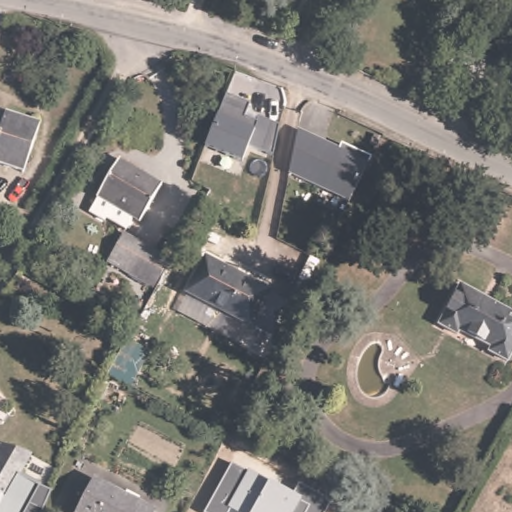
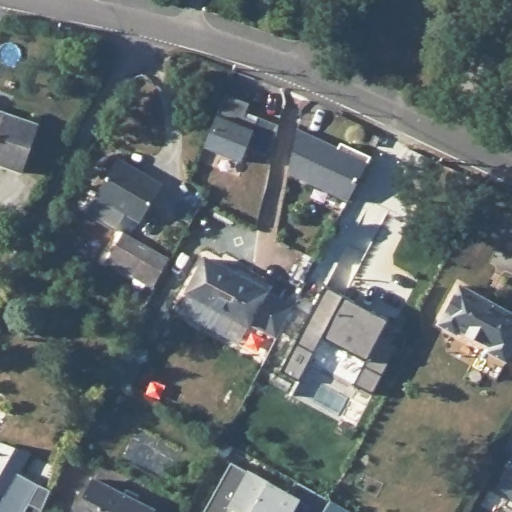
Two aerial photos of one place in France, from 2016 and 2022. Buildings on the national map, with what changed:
unchanged [(225,96),(248,105),(247,112),(279,126),(274,155),(251,145),(243,161),(204,147),(225,96)]
unchanged [(0,163),(0,110),(36,122),(34,127),(20,169),(0,163)]
unchanged [(297,128),(337,146),(342,140),(372,155),(350,201),(289,173),(297,128)]
unchanged [(104,213),(101,216),(86,207),(94,192),(114,157),(130,162),(160,179),(139,217),(128,211),(121,224),(104,213)]
unchanged [(156,285),(109,259),(124,233),(170,259),(156,285)]
unchanged [(279,338),(253,324),(193,293),(210,261),(297,304),(279,338)]
unchanged [(499,356),(482,348),(484,341),(453,326),(450,332),(431,323),(452,282),(512,312),(512,331),(499,356)]
new [(324,286),(343,297),(387,319),(383,325),(397,331),(389,345),(396,348),(371,393),(352,384),(364,360),(320,338),(298,380),(279,371),(324,286)]
unchanged [(253,324),(240,347),(180,314),(193,293),(253,324)]
unchanged [(105,373),(129,335),(154,350),(129,388),(105,373)]
unchanged [(4,446),(26,456),(24,460),(17,476),(34,485),(21,512),(0,512),(0,453),(3,448),(4,446)]
unchanged [(494,488),(512,456),(512,498),(494,488)]
unchanged [(226,512),(203,512),(232,461),(249,471),(269,481),(295,494),(299,483),(329,498),(322,512),(238,512),(228,508),(226,512)]
unchanged [(141,512),(73,512),(69,510),(85,475),(145,503),(141,512)]
unchanged [(50,493),(42,511),(41,512),(21,512),(34,485),(50,493)]
unchanged [(512,498),(512,509),(506,506),(512,498)]

